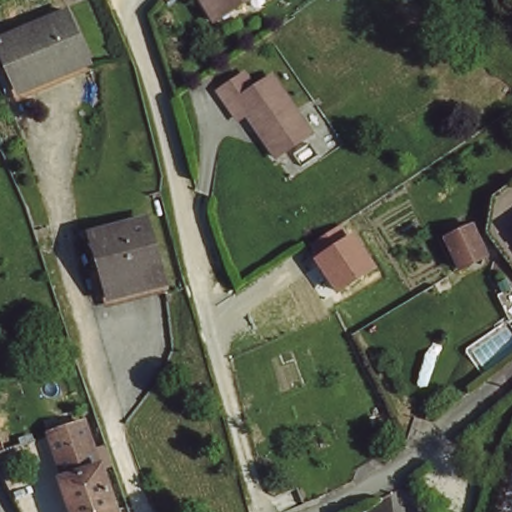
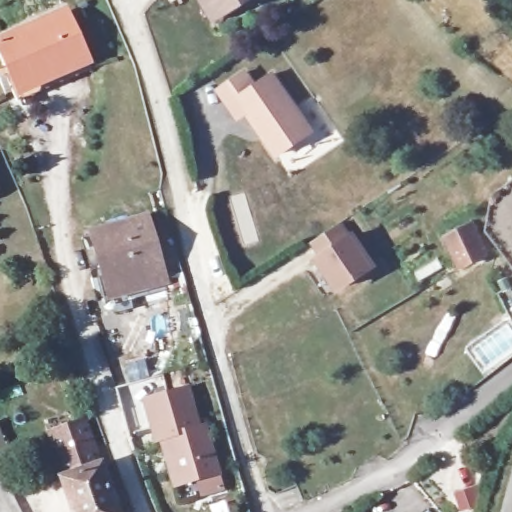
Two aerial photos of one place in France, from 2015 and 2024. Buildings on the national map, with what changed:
unchanged [(242,4),(215,19),(204,0),(247,0),(242,4)]
unchanged [(15,95),(0,61),(0,44),(60,17),(82,65),(15,95)]
unchanged [(273,75),(312,132),(277,155),(247,111),(240,116),(231,103),(222,90),(247,74),(255,86),(273,75)]
unchanged [(342,222),(352,235),(353,233),(377,267),(337,293),(313,260),(322,254),(316,239),(342,222)]
unchanged [(162,287),(108,300),(92,237),(147,224),(162,287)]
unchanged [(485,260),(457,271),(445,242),(470,231),(485,260)]
new [(200,500),(196,486),(180,490),(174,492),(160,446),(155,447),(143,407),(185,395),(197,435),(202,432),(217,480),(221,494),(200,500)]
unchanged [(75,512),(47,431),(81,420),(114,512),(75,512)]

